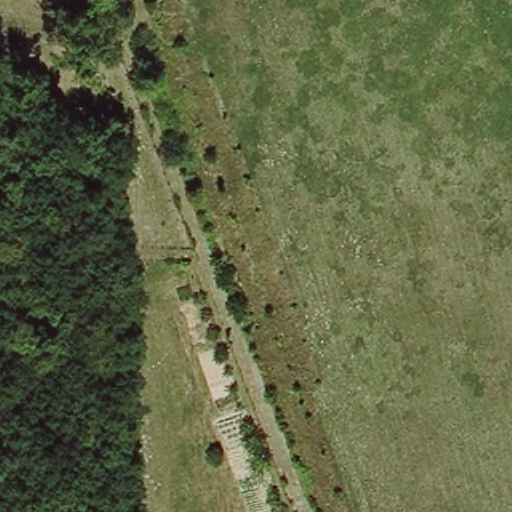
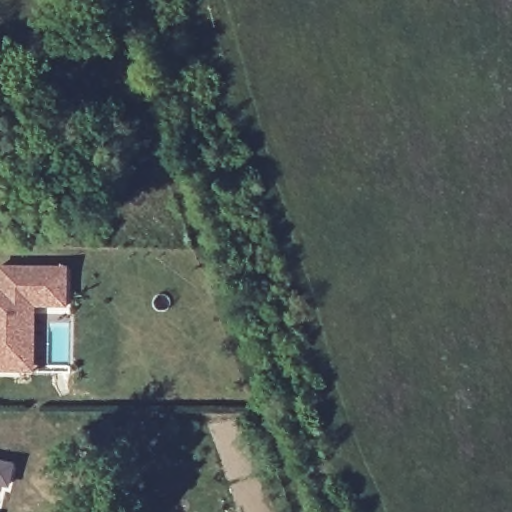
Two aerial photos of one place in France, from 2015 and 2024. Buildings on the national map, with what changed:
new [(66,308),(35,308),(33,374),(0,373),(0,266),(65,266),(66,308)]
new [(14,464),(9,490),(0,488),(0,461),(14,464)]

